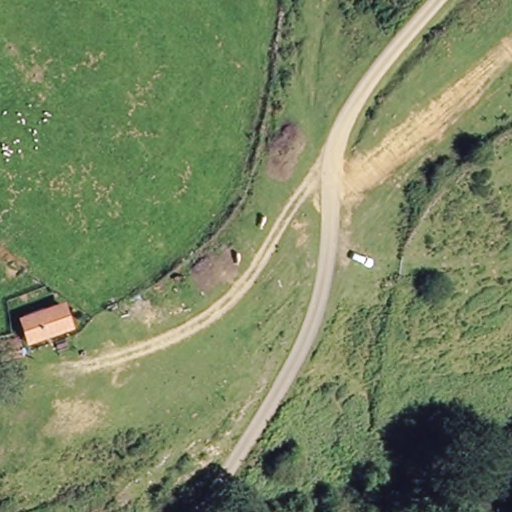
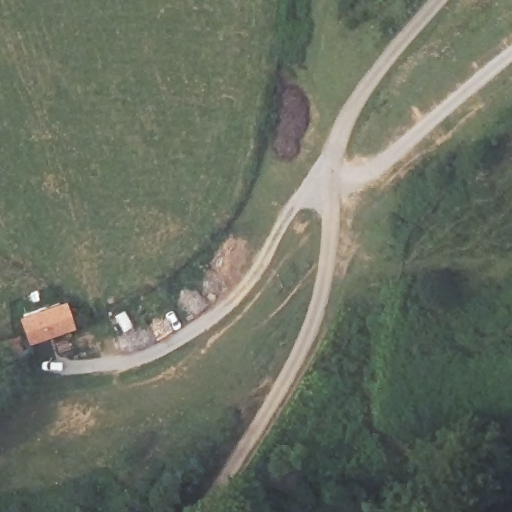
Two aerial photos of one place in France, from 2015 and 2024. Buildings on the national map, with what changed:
unchanged [(79,333),(32,347),(23,321),(70,305),(79,333)]

